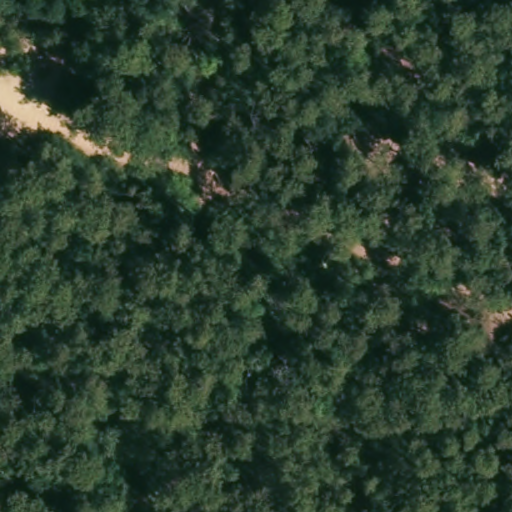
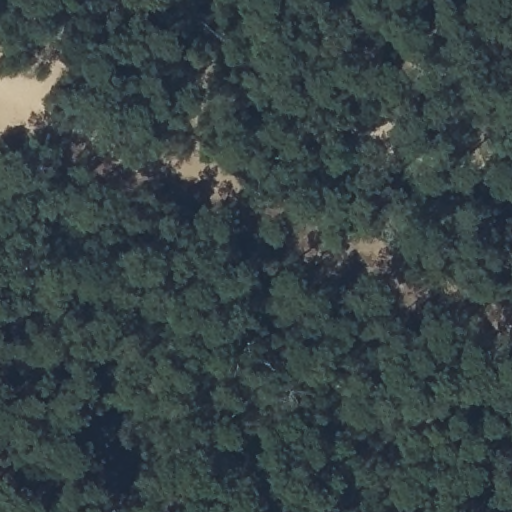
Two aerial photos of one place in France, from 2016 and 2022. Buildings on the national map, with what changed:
[]

